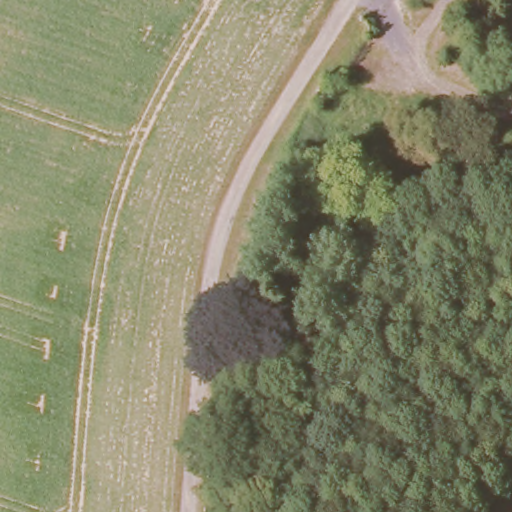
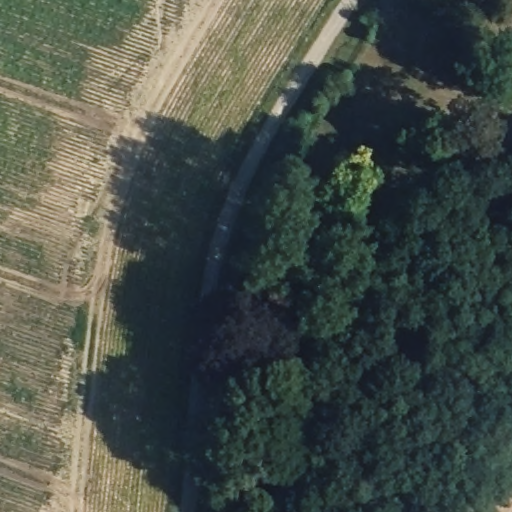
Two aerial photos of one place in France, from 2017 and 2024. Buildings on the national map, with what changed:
unchanged [(346,137),(365,96),(384,105),(388,109),(382,125),(387,127),(381,142),(375,139),(370,150),(365,147),(346,137)]

